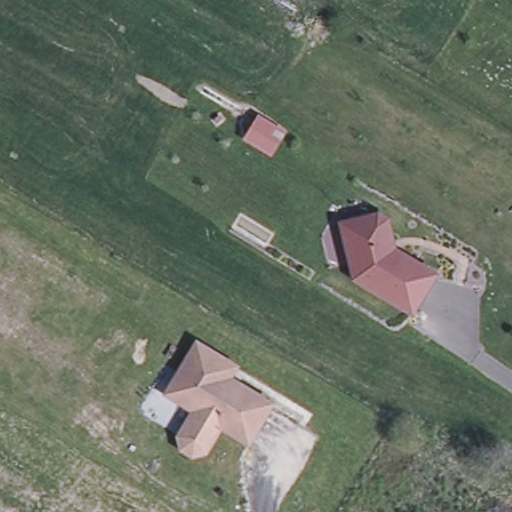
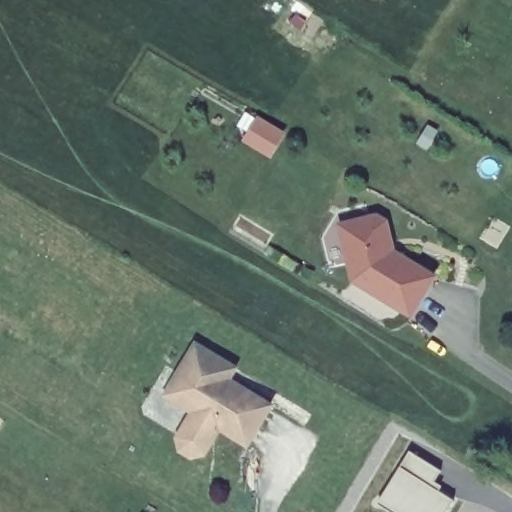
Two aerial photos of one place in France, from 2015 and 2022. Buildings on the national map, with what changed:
unchanged [(364,230),(366,229),(369,220),(378,220),(387,226),(391,246),(393,256),(436,280),(415,315),(357,282),(345,235),(364,230)]
unchanged [(236,367),(229,379),(272,405),(248,444),(221,427),(206,452),(193,456),(181,449),(178,437),(194,411),(178,401),(166,395),(179,373),(196,344),(236,367)]
new [(408,451),(441,471),(436,481),(442,485),(437,491),(452,500),(445,512),(389,512),(376,505),(408,451)]

